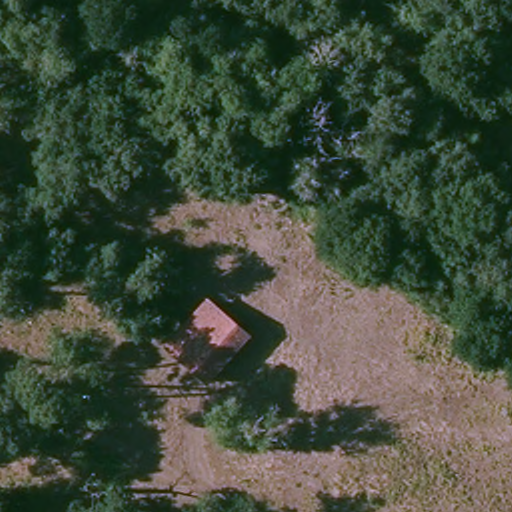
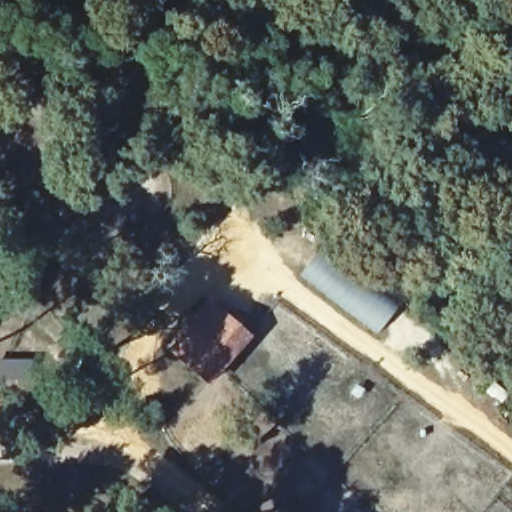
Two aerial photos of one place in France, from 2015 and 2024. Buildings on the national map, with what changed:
new [(307,269),(319,254),(363,292),(372,296),(375,290),(398,303),(382,328),(350,307),(307,269)]
unchanged [(245,344),(200,385),(167,347),(210,308),(245,344)]

